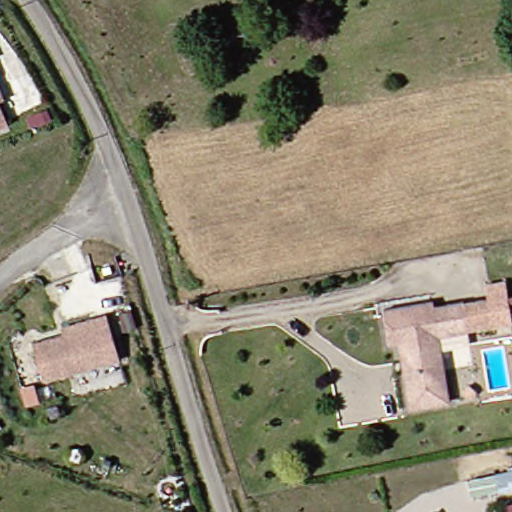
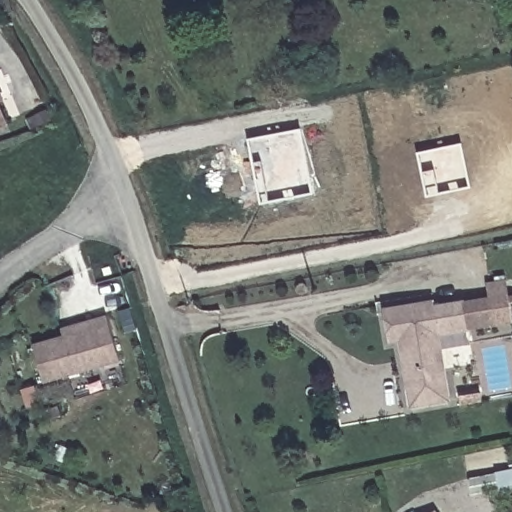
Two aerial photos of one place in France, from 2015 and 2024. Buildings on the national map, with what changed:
unchanged [(2,103),(0,104),(0,98),(2,103)]
unchanged [(6,128),(0,130),(0,113),(6,128)]
new [(250,139),(300,129),(313,192),(261,204),(250,139)]
new [(417,152),(461,143),(471,187),(427,197),(417,152)]
unchanged [(489,301),(486,284),(509,280),(512,302),(512,328),(472,335),(469,305),(489,301)]
unchanged [(469,305),(472,335),(444,340),(453,406),(412,408),(403,343),(393,344),(388,310),(469,305)]
unchanged [(120,357),(43,380),(32,342),(64,333),(62,325),(75,321),(106,311),(120,357)]
unchanged [(511,474),(512,481),(512,489),(484,495),(481,480),(511,474)]
unchanged [(437,508),(439,512),(429,512),(437,508)]

